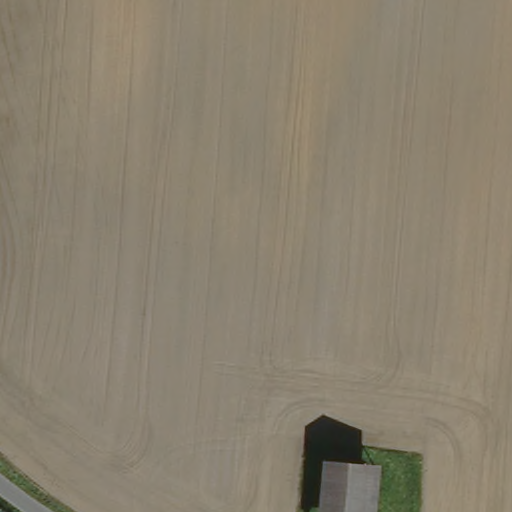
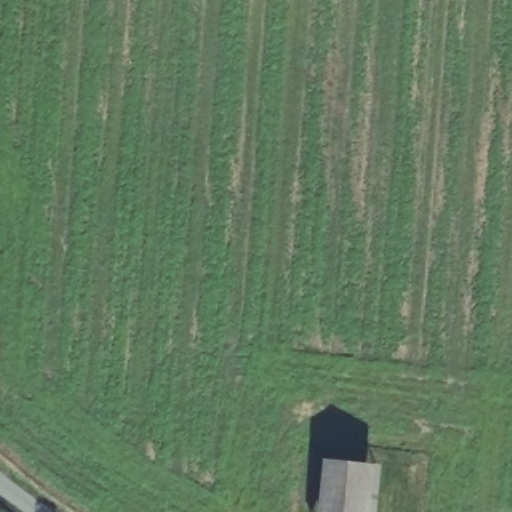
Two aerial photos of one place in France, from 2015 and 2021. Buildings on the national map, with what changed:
unchanged [(340,462),(389,468),(381,512),(332,512),(340,462)]

